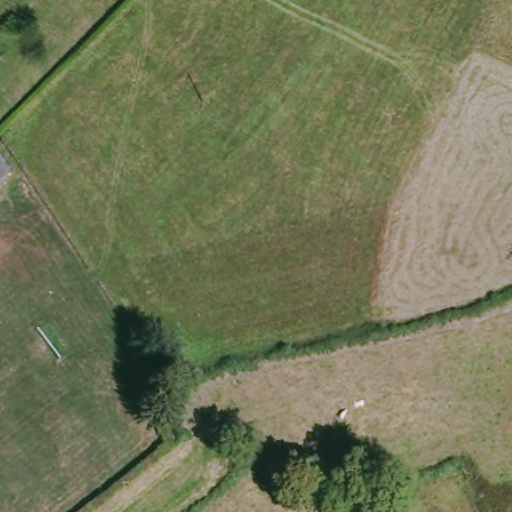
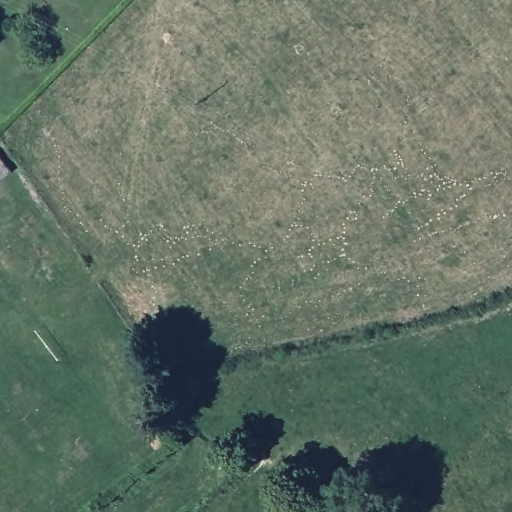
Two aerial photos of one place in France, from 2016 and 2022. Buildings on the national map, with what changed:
unchanged [(0,176),(0,155),(10,168),(0,176)]

